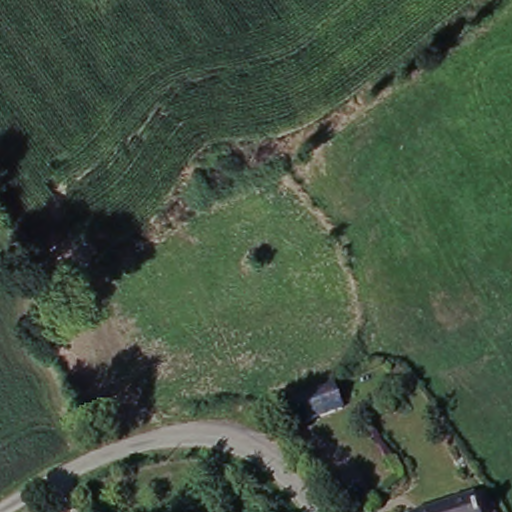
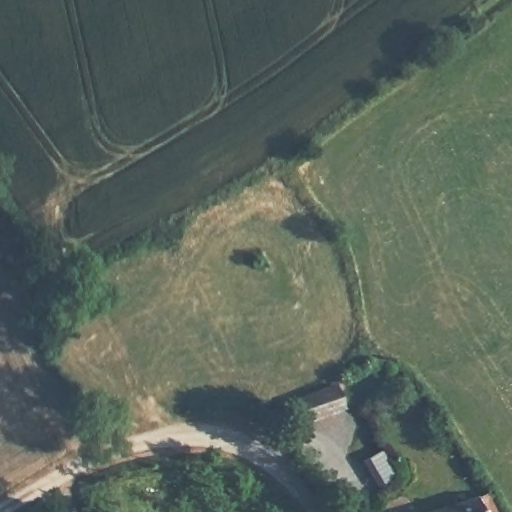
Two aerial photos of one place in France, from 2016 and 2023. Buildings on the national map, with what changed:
unchanged [(324,382),(334,410),(289,426),(279,401),(324,382)]
unchanged [(487,512),(426,512),(479,495),(487,512)]

